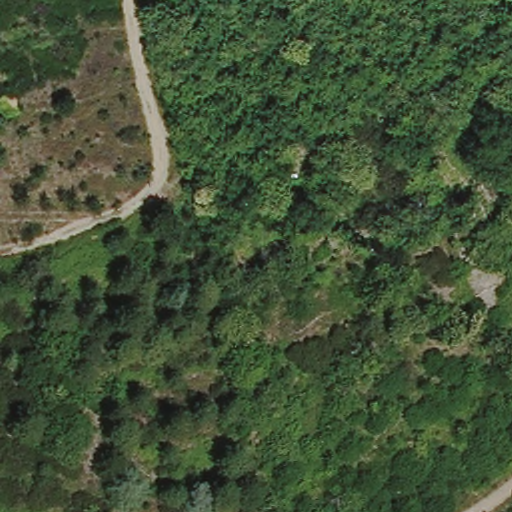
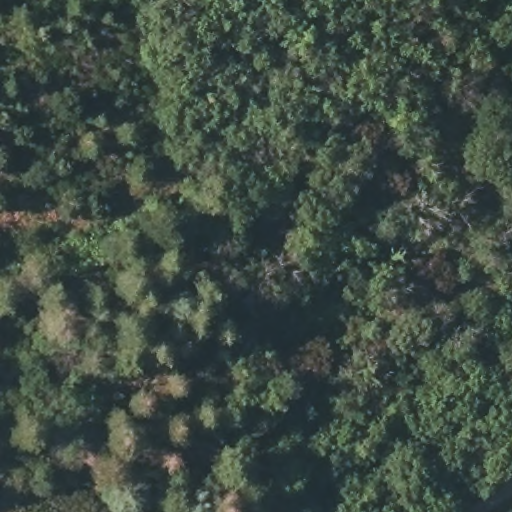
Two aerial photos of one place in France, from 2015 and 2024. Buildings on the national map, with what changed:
unchanged [(13,112),(0,111),(0,94),(13,95),(13,112)]

